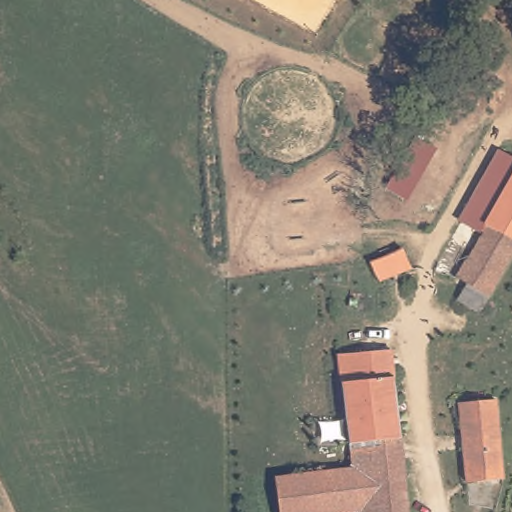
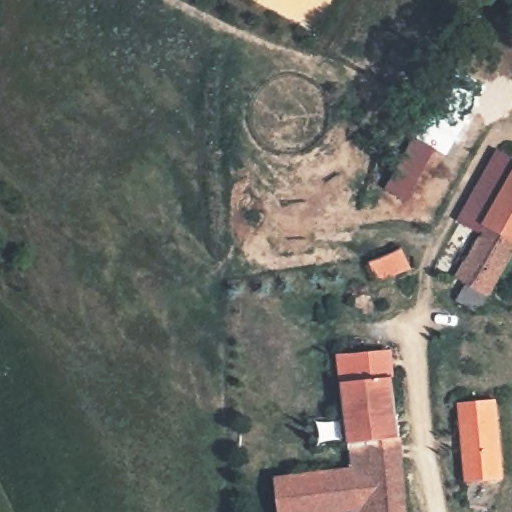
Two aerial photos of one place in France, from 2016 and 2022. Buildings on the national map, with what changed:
unchanged [(500,150),(512,156),(512,179),(488,222),(481,235),(458,221),(500,150)]
unchanged [(469,281),(457,275),(481,235),(488,222),(512,235),(512,259),(491,293),(479,315),(457,300),(469,281)]
unchanged [(373,263),(404,251),(411,269),(380,281),(373,263)]
unchanged [(367,294),(365,308),(352,307),(354,292),(367,294)]
unchanged [(359,510),(342,512),(282,512),(278,472),(353,465),(341,352),(353,352),(354,341),(375,340),(374,328),(391,327),(410,512),(359,512),(359,510)]
unchanged [(499,478),(464,481),(456,402),(492,398),(498,474),(500,474),(499,478)]

